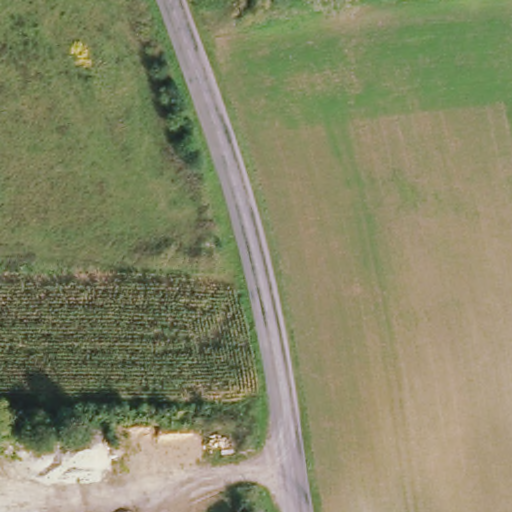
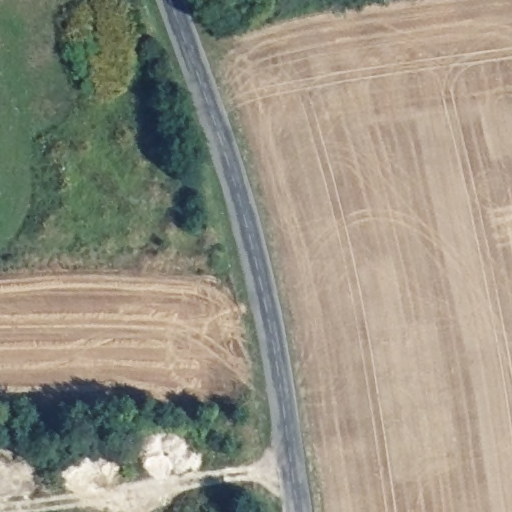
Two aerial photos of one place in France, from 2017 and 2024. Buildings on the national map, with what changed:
[]

